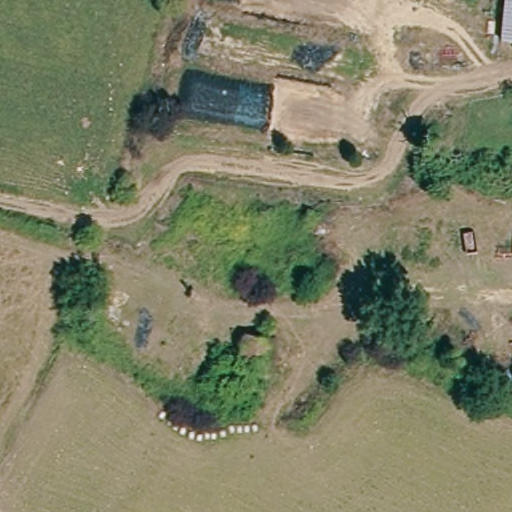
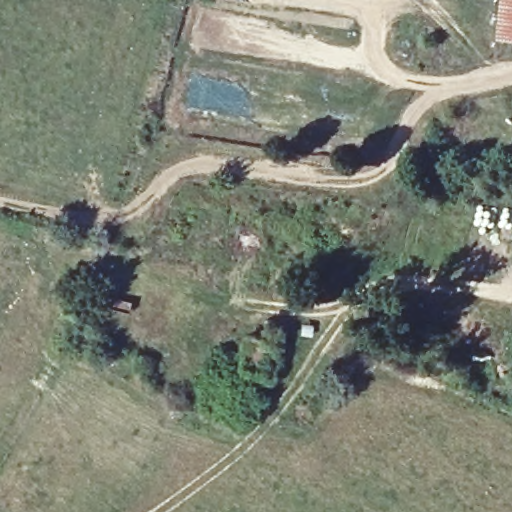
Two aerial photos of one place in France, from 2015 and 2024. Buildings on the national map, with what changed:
unchanged [(507,0),(512,0),(512,41),(503,40),(507,0)]
unchanged [(238,368),(248,341),(261,346),(276,351),(266,381),(238,368)]

